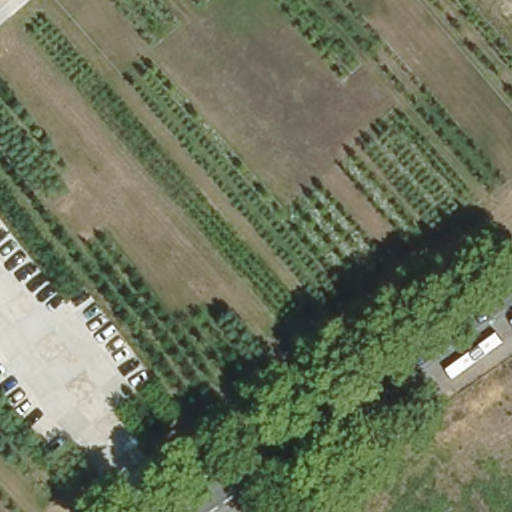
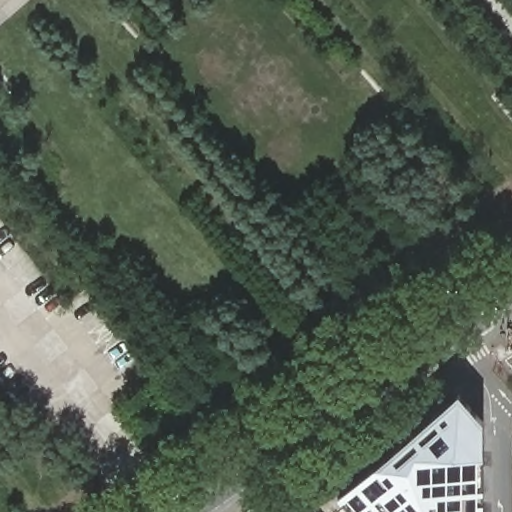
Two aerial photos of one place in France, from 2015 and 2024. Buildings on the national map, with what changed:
new [(373,468),(457,392),(483,422),(484,455),(484,512),(348,512),(337,500),(373,468)]

